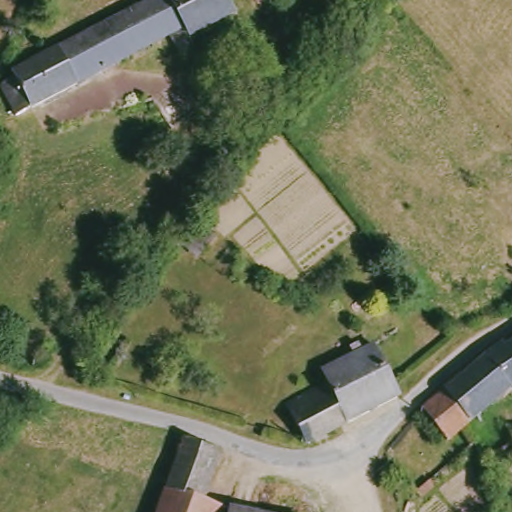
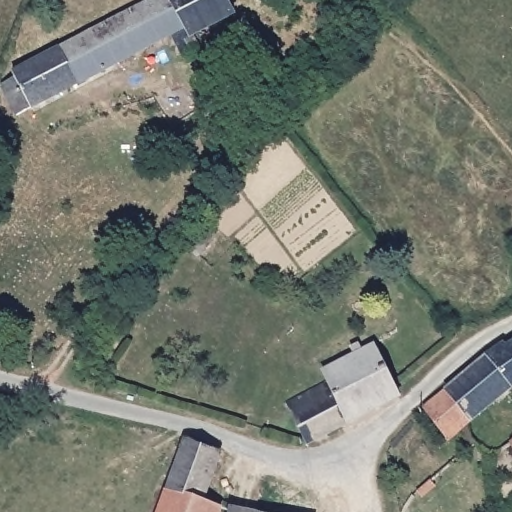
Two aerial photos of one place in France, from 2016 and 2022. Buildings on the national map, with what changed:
unchanged [(197,37),(203,49),(185,57),(174,39),(22,116),(8,90),(23,81),(19,73),(158,0),(232,0),(240,14),(197,37)]
unchanged [(450,441),(425,412),(428,407),(495,355),(496,357),(512,346),(512,391),(472,424),(450,441)]
unchanged [(402,401),(310,446),(295,421),(336,400),(323,376),(376,350),(388,373),(402,401)]
unchanged [(213,501),(173,487),(188,439),(190,439),(230,451),(213,501)]
unchanged [(231,512),(164,512),(173,487),(213,501),(233,507),(231,512)]
unchanged [(242,512),(243,507),(267,512),(242,512)]

